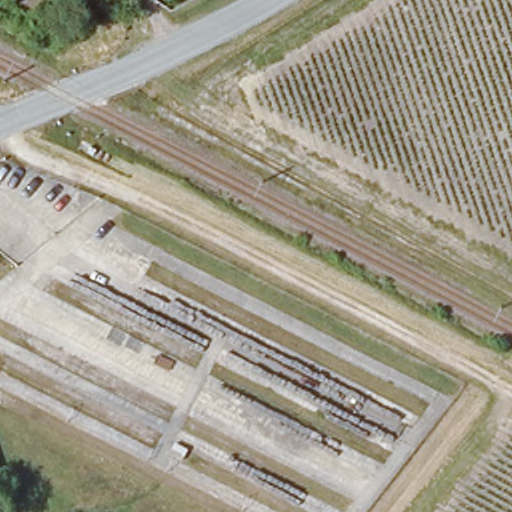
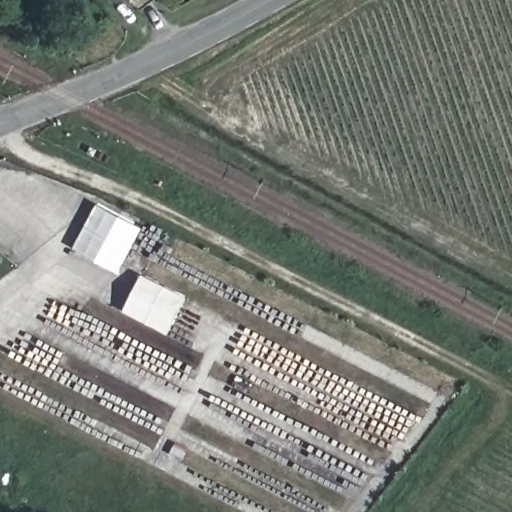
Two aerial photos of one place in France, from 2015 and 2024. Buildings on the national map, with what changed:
demolished [(101,143),(97,152),(75,142),(79,132),(101,143)]
new [(96,205),(142,230),(118,274),(72,249),(96,205)]
new [(123,312),(139,276),(184,299),(167,334),(123,312)]

